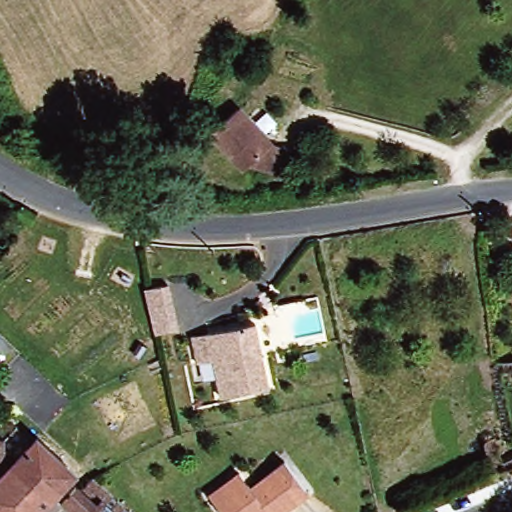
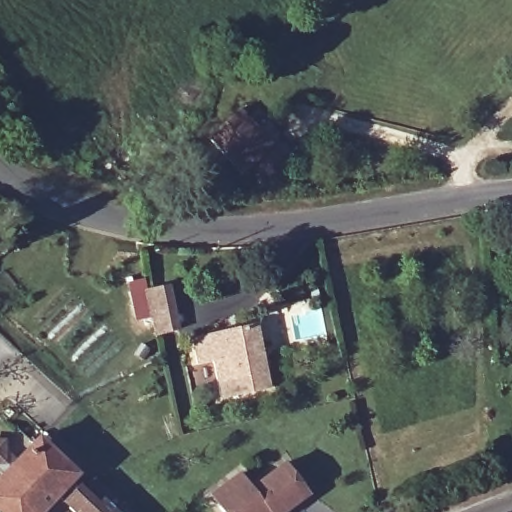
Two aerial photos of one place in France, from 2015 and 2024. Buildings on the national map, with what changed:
unchanged [(275,138),(292,141),(284,173),(250,164),(245,170),(209,138),(237,105),(275,138)]
unchanged [(155,332),(146,287),(169,282),(179,327),(155,332)]
unchanged [(192,365),(186,338),(250,323),(266,386),(218,398),(209,361),(192,365)]
unchanged [(75,471),(39,512),(0,512),(0,477),(39,437),(75,471)]
unchanged [(4,462),(0,463),(0,442),(4,441),(4,445),(4,462)]
unchanged [(308,492),(283,512),(221,512),(217,507),(209,497),(240,473),(247,483),(251,488),(285,462),(308,492)]
unchanged [(76,484),(80,488),(93,475),(132,512),(73,512),(60,500),(76,484)]

